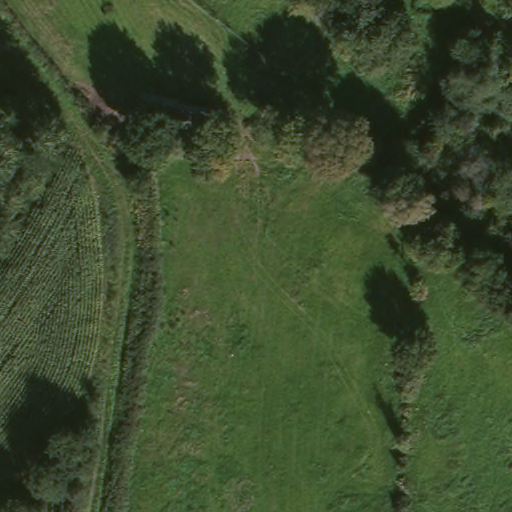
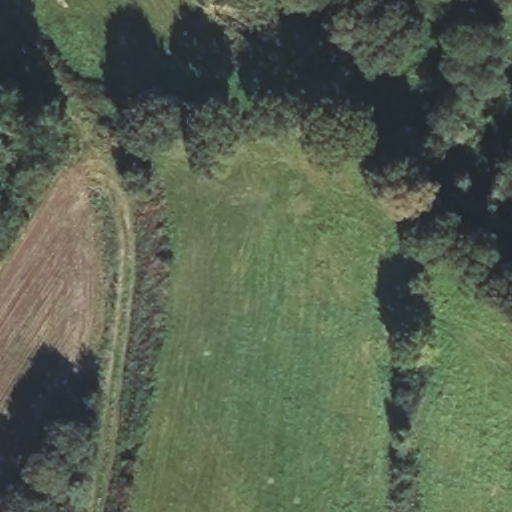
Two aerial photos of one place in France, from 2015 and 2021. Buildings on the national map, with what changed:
unchanged [(210,129),(174,122),(140,114),(144,96),(177,103),(214,111),(210,129)]

